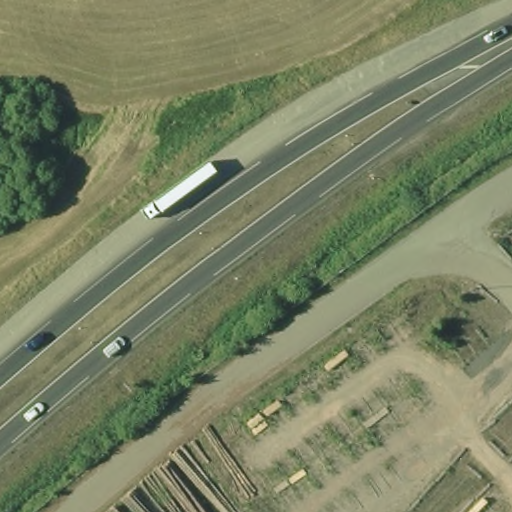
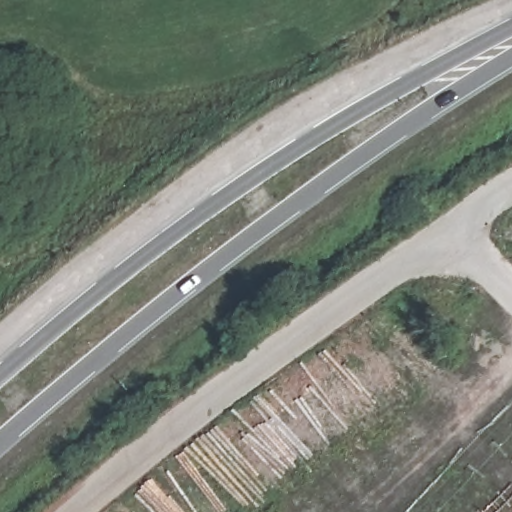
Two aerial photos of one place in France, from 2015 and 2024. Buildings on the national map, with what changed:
[]

